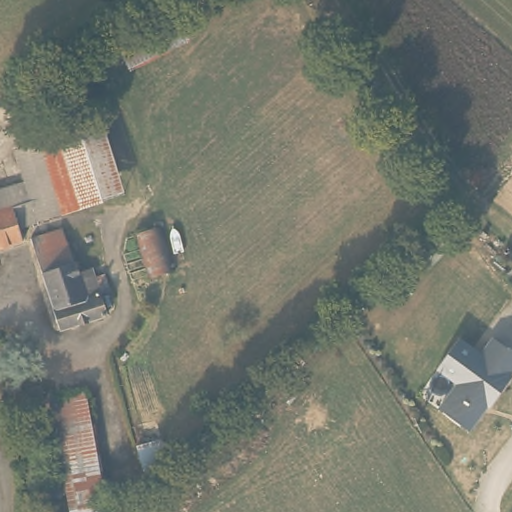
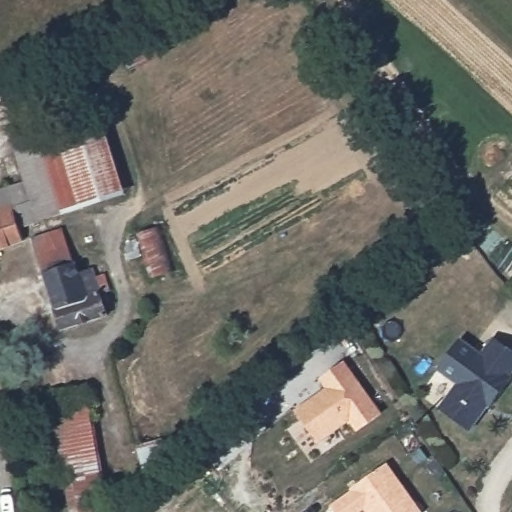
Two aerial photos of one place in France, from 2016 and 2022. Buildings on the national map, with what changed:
unchanged [(189,38),(128,69),(119,46),(178,16),(189,38)]
unchanged [(125,193),(64,213),(51,138),(102,120),(125,193)]
unchanged [(27,184),(17,151),(51,138),(64,213),(20,227),(8,189),(27,184)]
unchanged [(8,189),(20,227),(23,241),(0,248),(0,191),(8,189)]
unchanged [(100,294),(107,315),(61,330),(31,238),(62,228),(78,272),(91,268),(94,277),(104,274),(105,278),(109,290),(100,294)]
unchanged [(490,334),(512,349),(512,375),(470,431),(440,409),(458,386),(438,369),(459,338),(478,351),(490,334)]
new [(349,422),(318,443),(293,408),(324,386),(318,378),(344,360),(381,413),(356,431),(349,422)]
unchanged [(45,405),(10,411),(8,400),(43,393),(45,405)]
unchanged [(107,512),(74,512),(53,403),(85,396),(107,512)]
unchanged [(171,475),(147,481),(138,444),(162,438),(171,475)]
new [(365,509),(360,512),(335,512),(329,504),(350,490),(349,488),(387,462),(423,512),(367,512),(365,509)]

